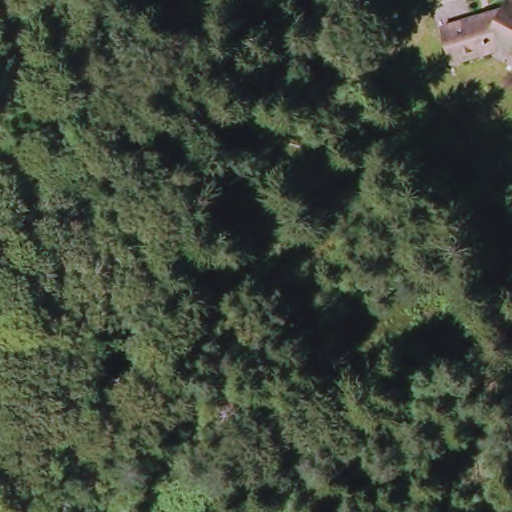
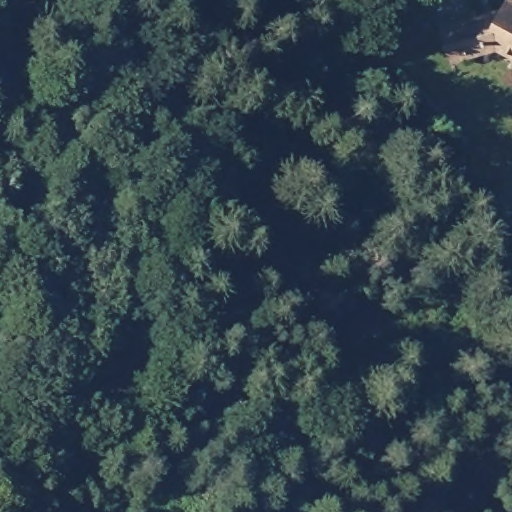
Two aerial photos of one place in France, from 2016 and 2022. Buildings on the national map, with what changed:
unchanged [(449,70),(438,36),(489,10),(495,27),(509,0),(512,0),(512,61),(501,56),(449,70)]

